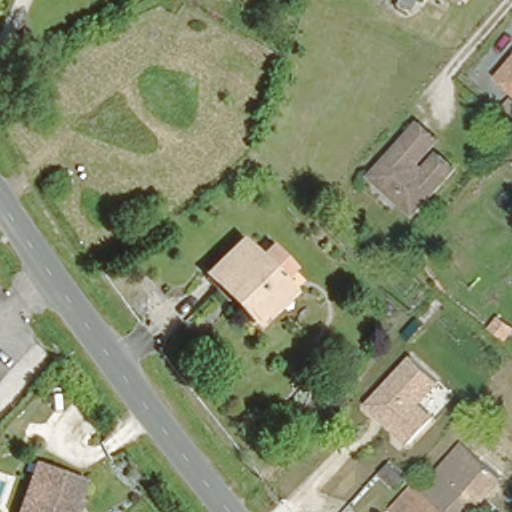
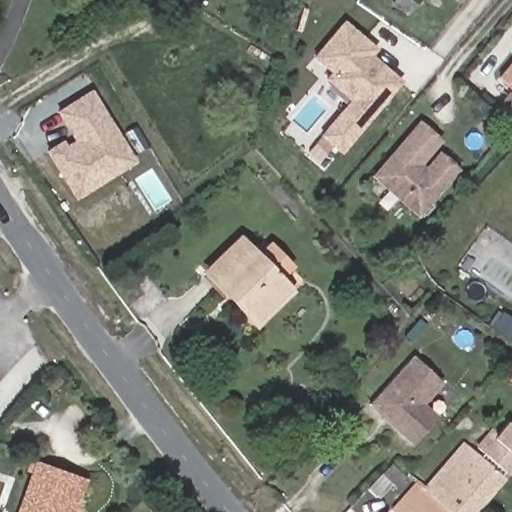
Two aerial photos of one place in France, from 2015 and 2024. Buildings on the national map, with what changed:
new [(343,20),(377,49),(373,55),(402,81),(340,154),(318,135),(347,100),(323,79),(330,72),(312,56),(343,20)]
unchanged [(497,79),(512,61),(512,91),(497,79)]
new [(61,140),(65,143),(72,139),(55,111),(91,89),(135,162),(73,200),(43,151),(61,140)]
unchanged [(372,170),(420,118),(426,124),(438,134),(417,157),(425,164),(437,151),(453,164),(415,207),(379,176),(372,170)]
unchanged [(260,326),(227,292),(215,279),(249,246),(290,289),(295,294),(260,326)]
unchanged [(414,355),(445,382),(425,402),(440,415),(412,446),(370,405),(414,355)]
new [(493,425),(497,431),(506,421),(512,426),(512,467),(473,512),(464,512),(501,471),(474,446),(493,425)]
unchanged [(423,485),(465,438),(501,471),(464,512),(452,512),(423,485)]
new [(409,479),(398,490),(393,486),(379,500),(367,488),(392,462),(409,479)]
unchanged [(38,463),(85,482),(72,512),(15,512),(38,463)]
unchanged [(452,512),(401,512),(393,506),(415,479),(416,478),(423,485),(452,512)]

